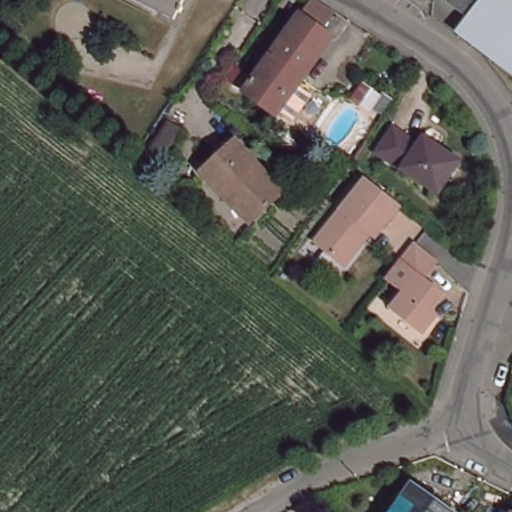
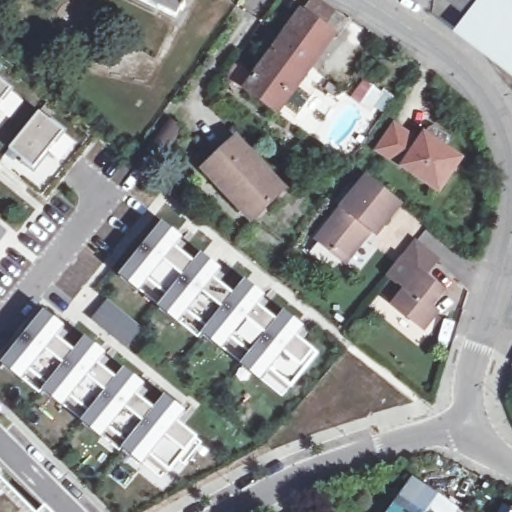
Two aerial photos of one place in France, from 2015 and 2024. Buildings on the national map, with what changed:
unchanged [(190,4),(187,10),(184,8),(180,16),(146,0),(187,0),(186,2),(190,4)]
unchanged [(464,15),(444,0),(512,0),(512,71),(455,27),(464,15)]
unchanged [(283,116),(272,109),(268,114),(237,92),(293,14),(300,4),(303,1),(327,16),(317,30),(325,35),(291,83),(301,90),(283,116)]
new [(48,202),(0,164),(0,57),(100,137),(48,202)]
unchanged [(288,127),(294,116),(307,124),(300,135),(288,127)]
unchanged [(398,129),(423,145),(427,139),(463,161),(443,194),(381,155),(398,129)]
unchanged [(283,188),(249,220),(225,195),(231,190),(206,163),(234,137),(283,188)]
unchanged [(375,234),(371,232),(346,262),(316,238),(364,175),(400,204),(375,234)]
new [(163,227),(176,237),(162,254),(167,258),(175,249),(196,265),(201,258),(214,269),(201,285),(206,289),(214,279),(235,297),(245,284),(259,295),(245,312),(250,315),(258,306),(279,323),(284,315),(297,326),(284,343),(289,347),(296,337),(317,354),(290,388),(270,372),(263,379),(245,365),(251,357),(231,340),(224,349),(206,334),(208,331),(187,314),(180,322),(162,307),(168,299),(148,283),(141,290),(123,276),(163,227)]
unchanged [(437,259),(425,275),(442,289),(430,307),(438,312),(424,329),(392,304),(404,288),(388,274),(414,242),(437,259)]
new [(143,329),(128,350),(91,319),(108,300),(143,329)]
new [(44,315),(58,327),(44,344),(49,348),(56,339),(76,354),(86,342),(99,353),(85,371),(90,374),(97,364),(118,382),(125,373),(138,384),(124,402),(128,405),(136,396),(157,413),(166,401),(179,412),(165,429),(169,433),(177,423),(204,445),(186,467),(180,462),(171,472),(151,456),(145,464),(126,449),(130,444),(111,429),(104,438),(85,422),(92,414),(72,398),(65,406),(46,391),(50,387),(31,372),(24,379),(5,364),(44,315)]
new [(49,512),(0,512),(0,463),(49,512)]
unchanged [(418,484),(421,479),(447,498),(444,503),(455,512),(394,512),(416,482),(418,484)]
unchanged [(506,509),(511,512),(505,512),(506,509)]

